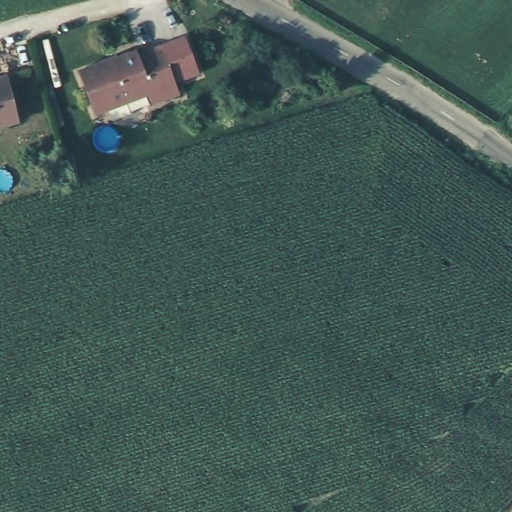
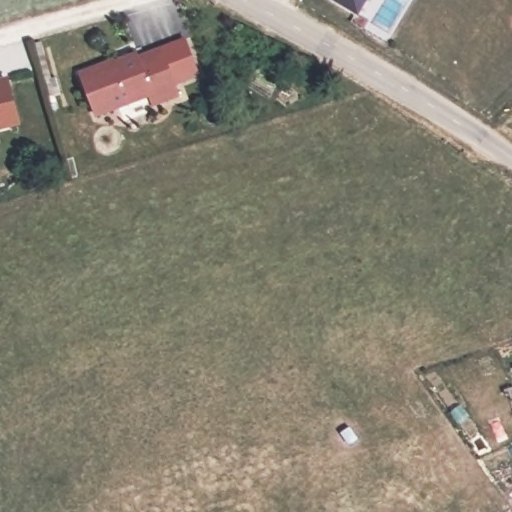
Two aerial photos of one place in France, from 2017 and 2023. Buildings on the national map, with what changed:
unchanged [(198,80),(146,107),(141,102),(90,118),(78,76),(131,60),(134,61),(181,45),(198,80)]
unchanged [(0,127),(0,85),(9,125),(0,127)]

